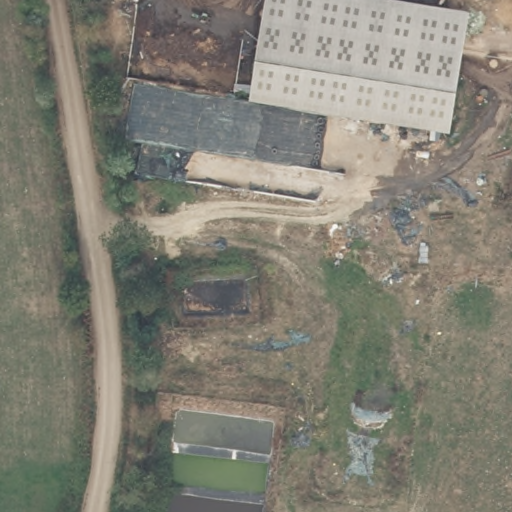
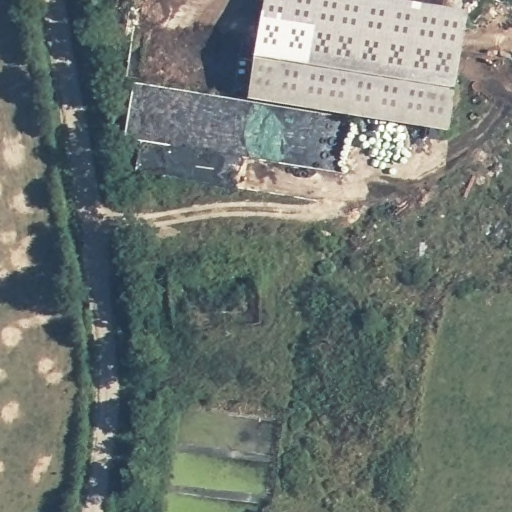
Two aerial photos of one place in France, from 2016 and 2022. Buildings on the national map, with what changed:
unchanged [(448,126),(446,126),(250,95),(265,0),(342,0),(464,20),(466,20),(448,126)]

